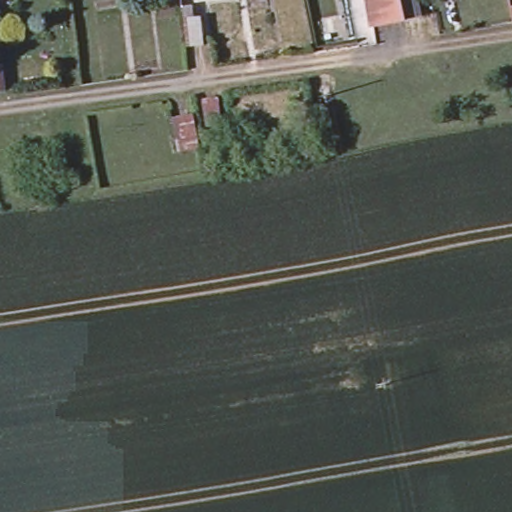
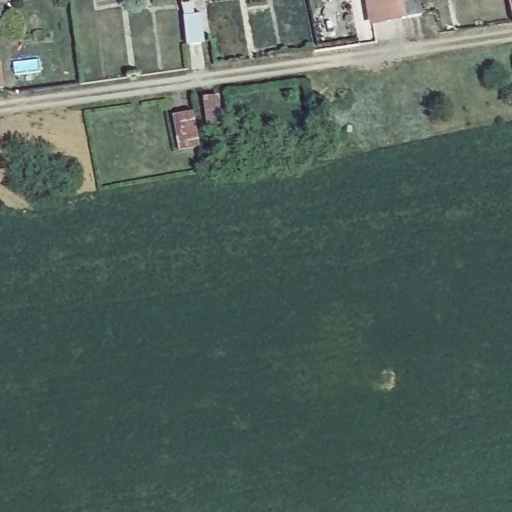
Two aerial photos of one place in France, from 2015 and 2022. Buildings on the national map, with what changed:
unchanged [(401,15),(363,21),(360,0),(415,0),(417,11),(401,15)]
unchanged [(201,55),(185,55),(184,26),(178,19),(178,15),(191,15),(191,26),(199,26),(201,55)]
unchanged [(218,117),(204,120),(200,94),(215,91),(218,117)]
unchanged [(314,109),(312,105),(321,104),(322,108),(314,109)]
unchanged [(197,141),(176,146),(169,113),(189,108),(197,141)]

